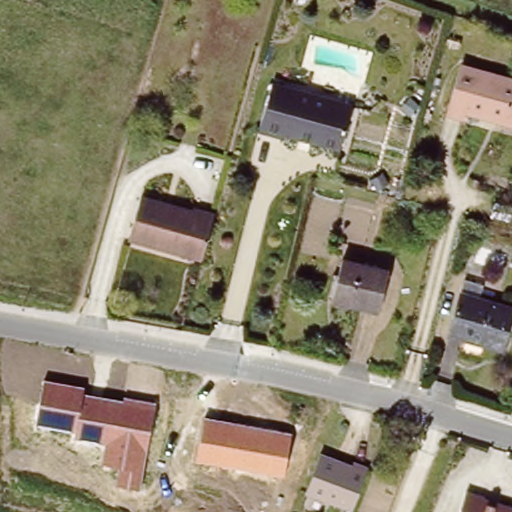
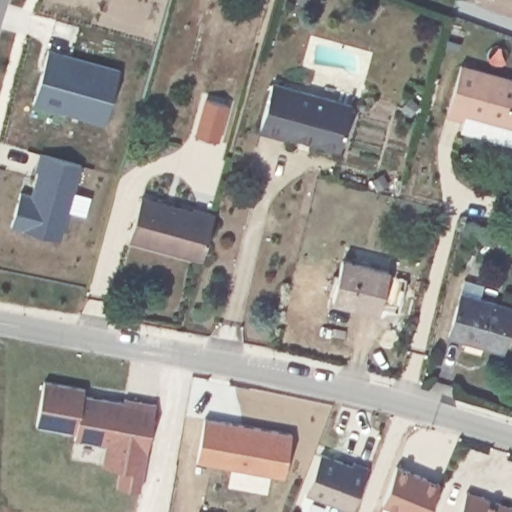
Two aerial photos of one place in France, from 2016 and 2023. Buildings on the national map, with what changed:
new [(102,122),(33,102),(50,49),(119,70),(102,122)]
unchanged [(462,121),(445,116),(457,67),(512,83),(512,128),(464,115),(462,121)]
unchanged [(288,136),(286,136),(284,140),(260,133),(272,86),(300,94),(288,136)]
unchanged [(353,109),(342,152),(288,136),(300,94),(353,109)]
new [(61,239),(11,226),(20,191),(32,194),(39,169),(35,167),(40,153),(82,166),(61,239)]
unchanged [(202,261),(129,239),(140,197),(192,212),(193,210),(215,216),(202,261)]
unchanged [(332,297),(342,258),(391,270),(380,308),(332,297)]
unchanged [(444,340),(455,295),(458,284),(475,288),(472,300),(512,311),(512,315),(499,356),(444,340)]
unchanged [(44,380),(85,387),(84,395),(122,402),(124,398),(156,405),(140,491),(115,486),(119,467),(102,465),(106,445),(70,436),(70,431),(37,423),(44,380)]
unchanged [(205,418),(291,436),(282,477),(196,460),(205,418)]
unchanged [(304,494),(319,455),(350,467),(352,465),(367,470),(352,512),(351,512),(304,494)]
unchanged [(512,512),(457,512),(463,492),(512,507),(512,512)]

